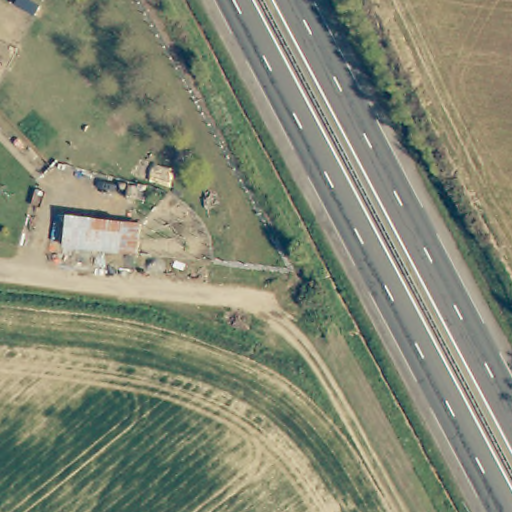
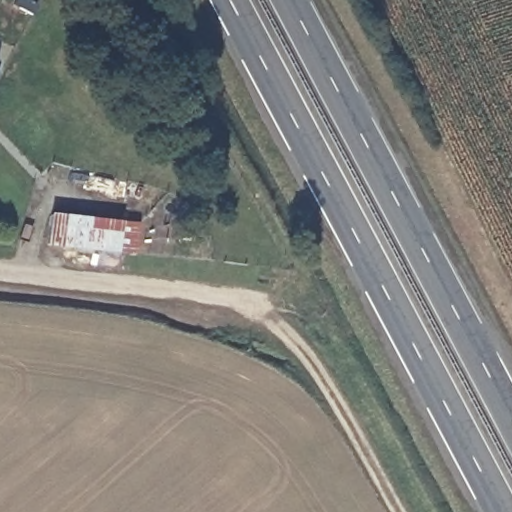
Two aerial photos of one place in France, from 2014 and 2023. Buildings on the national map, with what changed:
unchanged [(128,222),(124,251),(69,245),(71,216),(128,222)]

